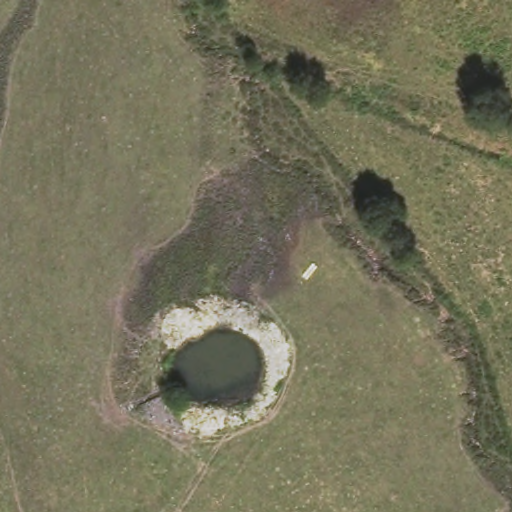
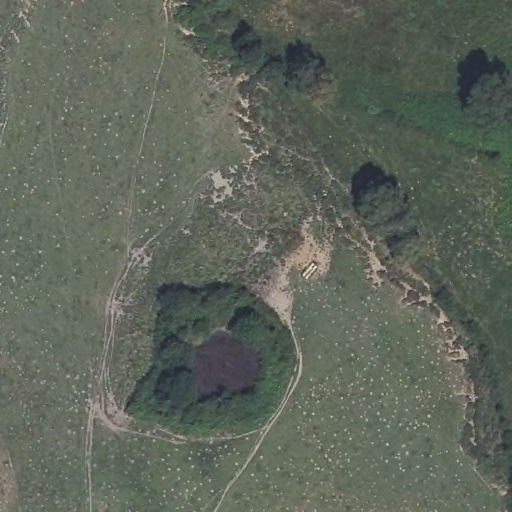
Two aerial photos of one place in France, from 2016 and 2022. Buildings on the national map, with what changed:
[]

